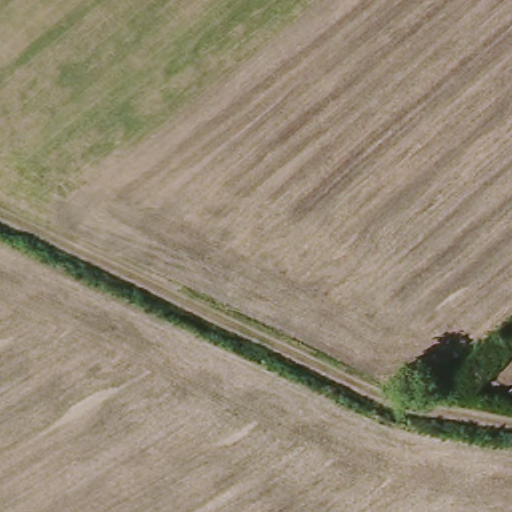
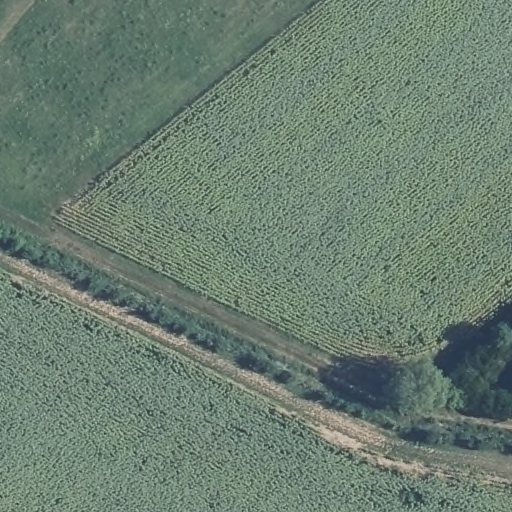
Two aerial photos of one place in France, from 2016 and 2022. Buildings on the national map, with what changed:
unchanged [(508,404),(512,382),(512,404),(508,404)]

